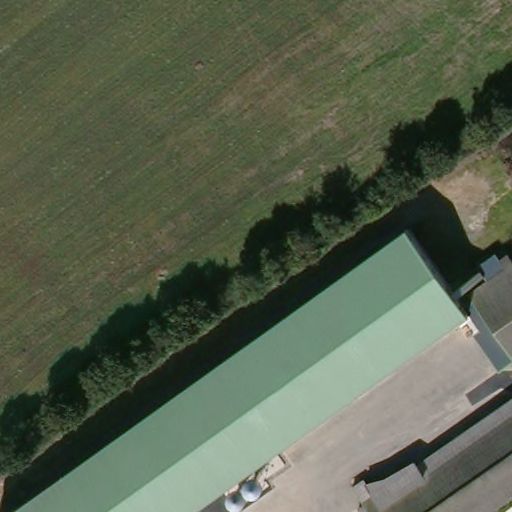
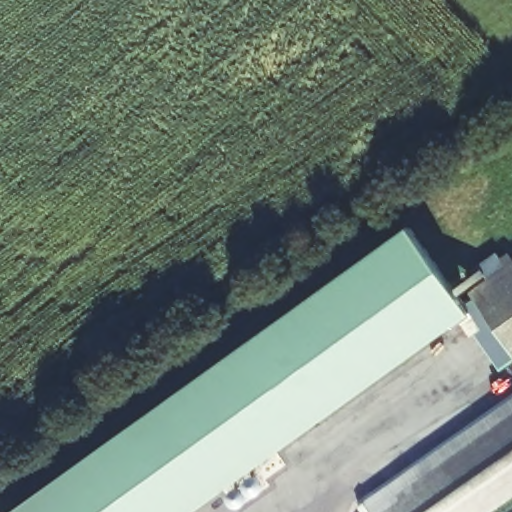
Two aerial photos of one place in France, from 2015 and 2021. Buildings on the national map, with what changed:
unchanged [(469,313),(191,512),(8,512),(408,226),(469,313)]
unchanged [(467,303),(475,297),(471,291),(491,277),(481,262),(497,250),(508,265),(512,263),(512,360),(508,362),(467,303)]
unchanged [(512,414),(437,466),(384,503),(374,491),(512,397),(512,414)]
unchanged [(372,512),(370,509),(363,501),(374,491),(384,503),(437,466),(512,414),(512,498),(492,512),(372,512)]

